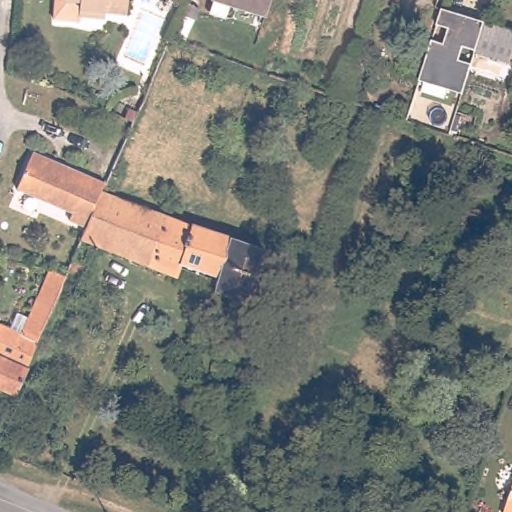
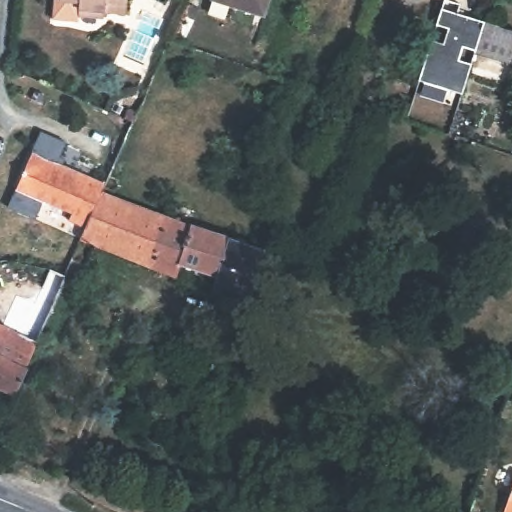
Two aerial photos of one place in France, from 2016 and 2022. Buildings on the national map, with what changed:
unchanged [(130,8),(106,5),(107,12),(79,9),(80,0),(130,0),(130,8)]
unchanged [(212,1),(212,0),(269,0),(263,17),(212,1)]
unchanged [(186,3),(199,9),(186,41),(171,36),(186,3)]
unchanged [(437,10),(480,23),(471,54),(458,94),(415,80),(437,10)]
unchanged [(482,20),(512,31),(512,50),(507,65),(471,54),(480,23),(482,20)]
unchanged [(67,221),(69,215),(12,190),(28,152),(49,162),(48,167),(82,181),(85,177),(102,183),(100,191),(82,227),(67,221)]
unchanged [(82,227),(100,191),(195,227),(197,221),(267,249),(247,303),(213,290),(218,276),(181,262),(176,276),(80,237),(82,227)]
unchanged [(87,263),(82,276),(68,272),(75,258),(87,263)]
unchanged [(25,332),(52,268),(68,272),(55,305),(15,395),(0,388),(0,322),(25,332)]
unchanged [(512,512),(505,512),(512,489),(512,512)]

